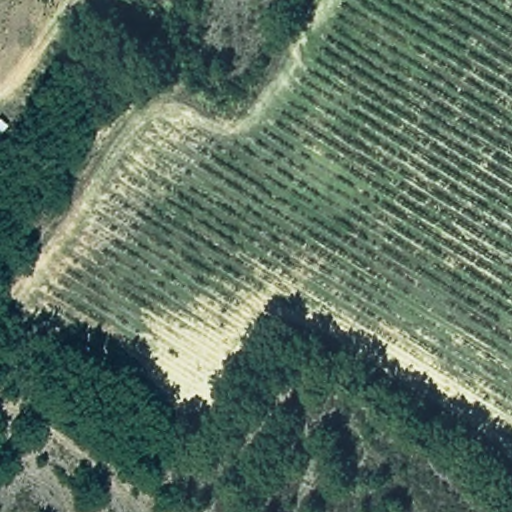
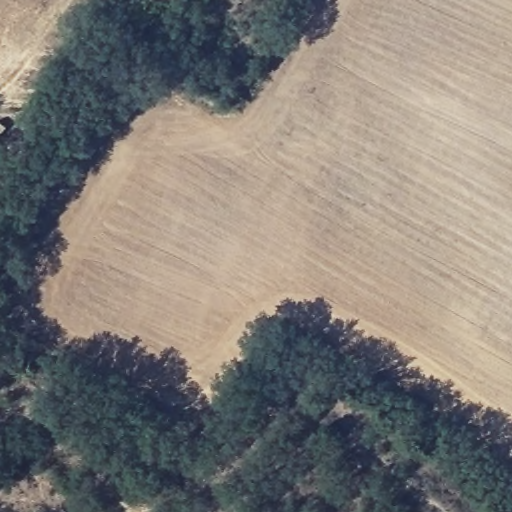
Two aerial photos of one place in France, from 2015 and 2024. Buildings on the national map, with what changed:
unchanged [(5,128),(0,136),(0,124),(5,128)]

